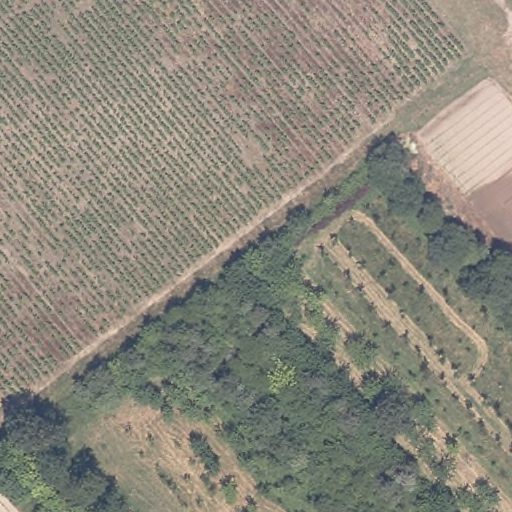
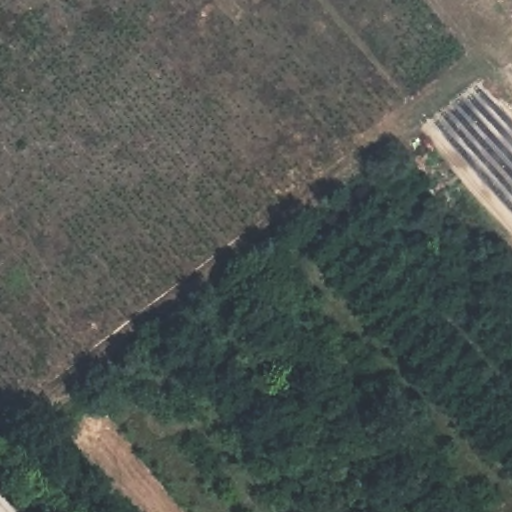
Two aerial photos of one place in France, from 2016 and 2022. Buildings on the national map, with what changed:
unchanged [(492,0),(508,0),(498,8),(492,0)]

